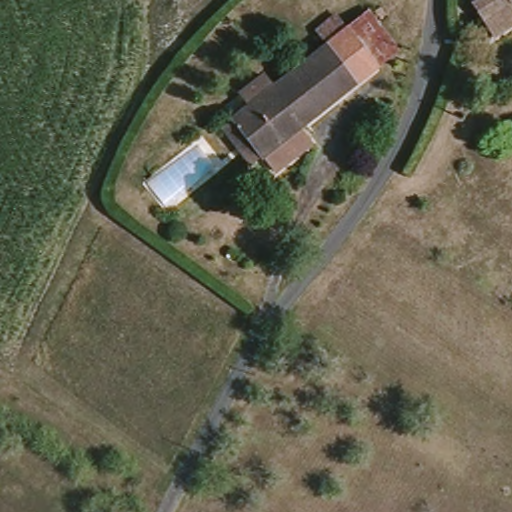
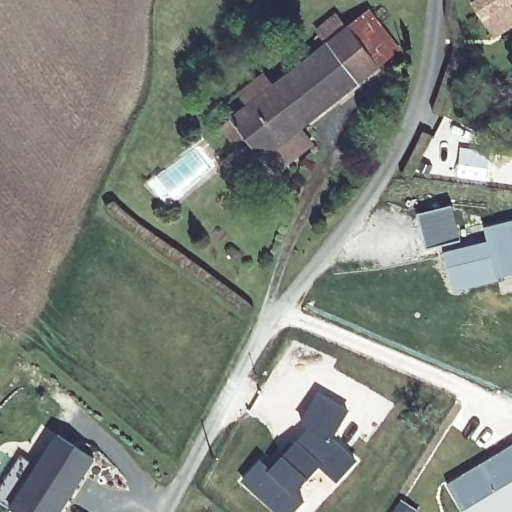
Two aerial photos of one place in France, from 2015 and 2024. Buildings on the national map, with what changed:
unchanged [(493,39),(482,22),(468,0),(512,0),(512,3),(508,5),(512,11),(512,27),(493,39)]
unchanged [(354,24),(376,7),(405,44),(383,62),(354,24)]
unchanged [(334,40),(324,26),(343,11),(354,24),(383,62),(364,77),(334,40)]
unchanged [(245,140),(231,123),(258,101),(246,87),(267,70),(279,85),(334,40),(364,77),(292,135),(304,151),(285,167),(272,151),(271,152),(261,160),(245,140)]
new [(448,203),(457,239),(423,248),(414,212),(448,203)]
new [(486,240),(482,226),(512,218),(512,264),(494,269),(496,276),(451,287),(442,252),(486,240)]
new [(288,442),(292,446),(308,428),(300,424),(316,394),(346,410),(330,439),(354,461),(336,481),(318,465),(294,493),(302,501),(293,512),(276,512),(242,481),(259,462),(263,458),(269,463),(288,442)]
new [(62,512),(14,512),(9,509),(57,436),(95,460),(62,512)]
new [(462,512),(444,483),(512,444),(512,512),(462,512)]
new [(417,509),(416,512),(391,512),(400,497),(417,509)]

